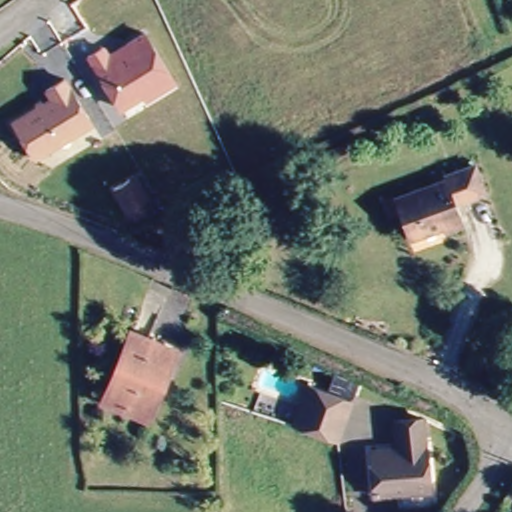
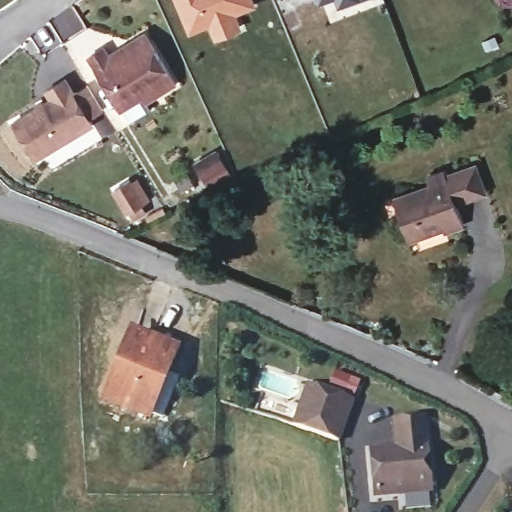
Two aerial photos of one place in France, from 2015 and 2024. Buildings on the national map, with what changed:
new [(215,42),(209,27),(189,36),(174,0),(249,0),(252,9),(232,17),(238,32),(215,42)]
new [(339,5),(338,0),(351,0),(339,5)]
unchanged [(120,110),(86,57),(106,44),(109,51),(144,31),(176,82),(146,102),(142,96),(120,110)]
unchanged [(40,159),(16,123),(55,97),(50,90),(68,77),(97,121),(40,159)]
unchanged [(463,208),(470,226),(450,235),(445,228),(414,242),(398,205),(453,181),(450,177),(476,165),(491,195),(463,208)]
unchanged [(149,221),(144,213),(142,215),(127,191),(141,182),(143,185),(148,181),(161,200),(155,203),(156,205),(154,207),(159,214),(149,221)]
unchanged [(147,412),(108,397),(134,332),(173,348),(147,412)]
unchanged [(342,448),(297,433),(311,392),(356,407),(342,448)]
unchanged [(381,507),(375,463),(401,460),(397,432),(425,428),(429,456),(431,456),(438,500),(418,502),(403,504),(381,507)]

